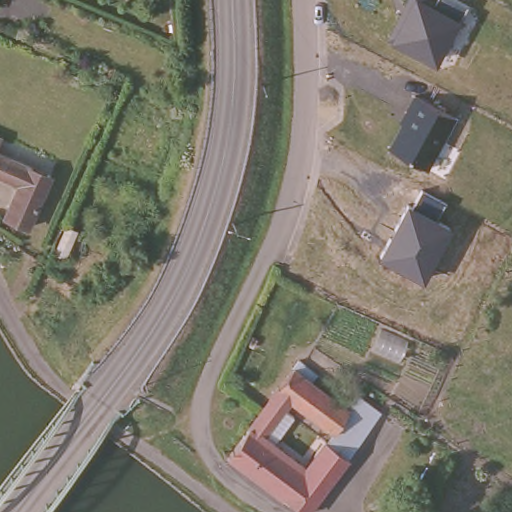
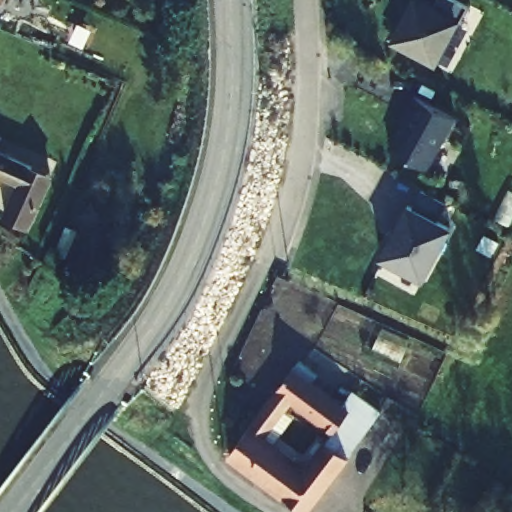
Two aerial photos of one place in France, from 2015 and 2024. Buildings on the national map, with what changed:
unchanged [(437,66),(384,38),(404,0),(459,0),(467,4),(437,66)]
unchanged [(454,118),(427,169),(386,146),(413,97),(454,118)]
unchanged [(51,173),(29,224),(6,214),(20,181),(0,172),(0,152),(51,173)]
unchanged [(447,205),(440,220),(451,227),(425,280),(379,255),(407,201),(413,204),(420,192),(447,205)]
unchanged [(64,256),(54,251),(66,226),(76,230),(64,256)]
unchanged [(309,378),(366,422),(302,507),(226,448),(297,355),(315,369),(309,378)]

